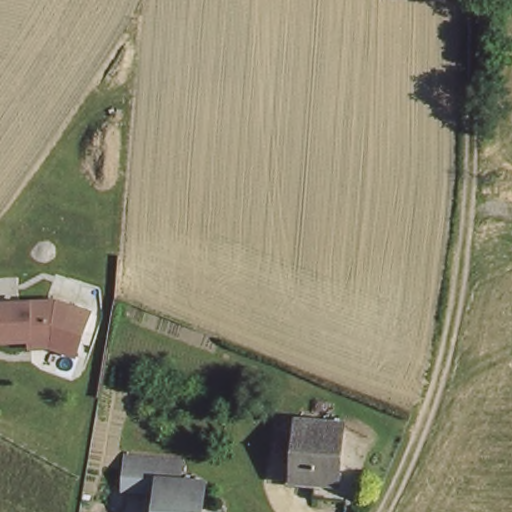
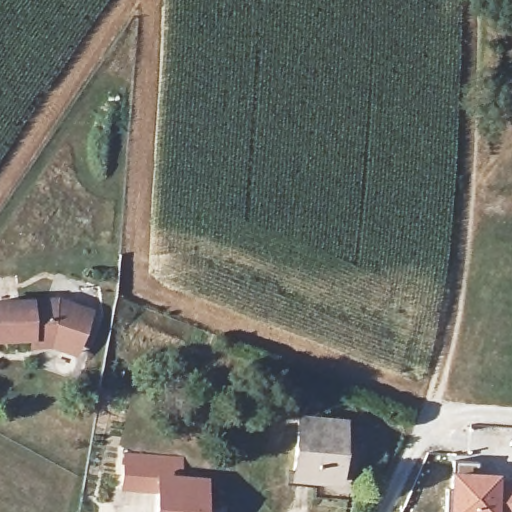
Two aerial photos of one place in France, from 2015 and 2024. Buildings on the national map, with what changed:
unchanged [(58,293),(95,311),(72,359),(48,351),(0,345),(0,293),(58,293)]
unchanged [(339,422),(337,479),(295,478),(297,423),(339,422)]
unchanged [(125,458),(181,464),(180,483),(201,485),(199,512),(157,512),(158,496),(122,494),(125,458)]
new [(500,472),(500,479),(512,480),(512,512),(446,512),(448,471),(500,472)]

